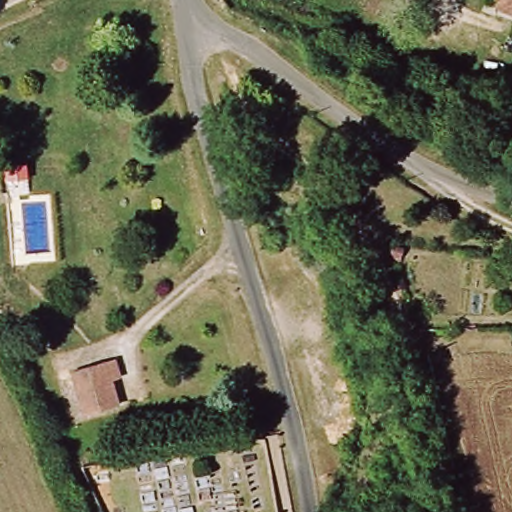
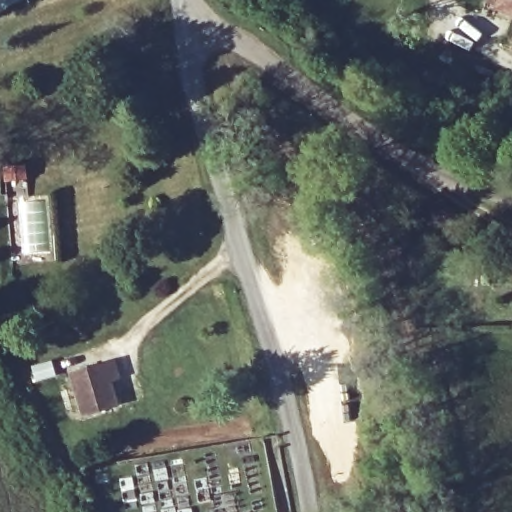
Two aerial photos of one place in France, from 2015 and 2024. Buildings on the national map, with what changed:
unchanged [(493,0),(512,0),(512,10),(504,6),(493,0)]
unchanged [(87,412),(77,367),(110,359),(120,357),(125,378),(114,381),(120,405),(87,412)]

